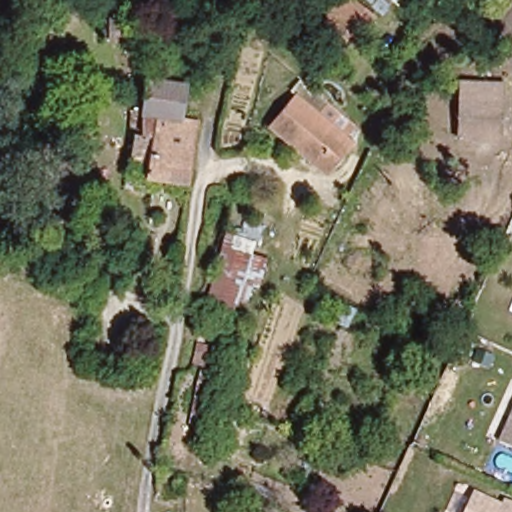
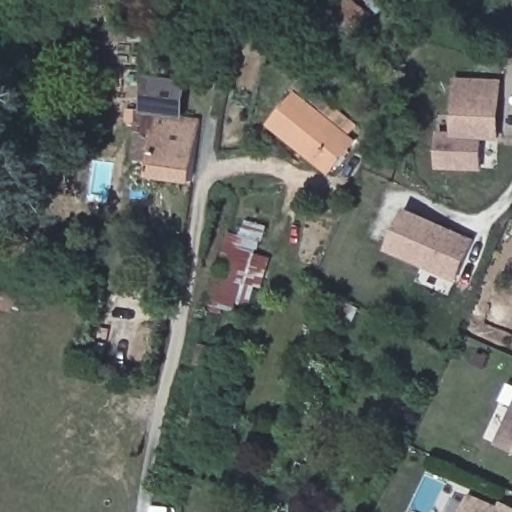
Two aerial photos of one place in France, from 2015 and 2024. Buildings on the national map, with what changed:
unchanged [(326,15),(339,0),(358,0),(377,16),(365,30),(356,40),(347,33),(326,15)]
unchanged [(498,84),(495,138),(457,134),(457,82),(498,84)]
unchanged [(350,143),(322,174),(269,128),(296,95),(350,143)]
unchanged [(177,105),(173,128),(137,123),(140,99),(177,105)]
unchanged [(139,194),(142,173),(132,172),(136,141),(126,139),(129,127),(138,128),(141,133),(186,139),(178,200),(139,194)]
new [(457,134),(484,137),(484,170),(438,169),(439,131),(457,131),(457,134)]
new [(455,280),(388,252),(405,214),(471,243),(455,280)]
unchanged [(220,230),(249,239),(248,253),(267,257),(250,298),(236,297),(228,309),(203,301),(220,230)]
unchanged [(512,405),(512,450),(496,444),(512,405)]
unchanged [(502,504),(512,509),(512,512),(464,512),(471,497),(499,509),(502,504)]

